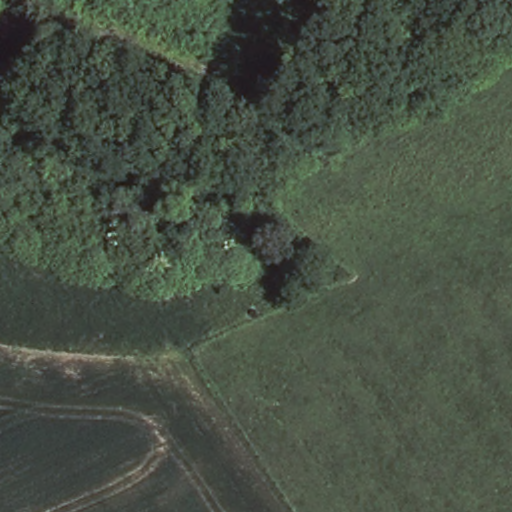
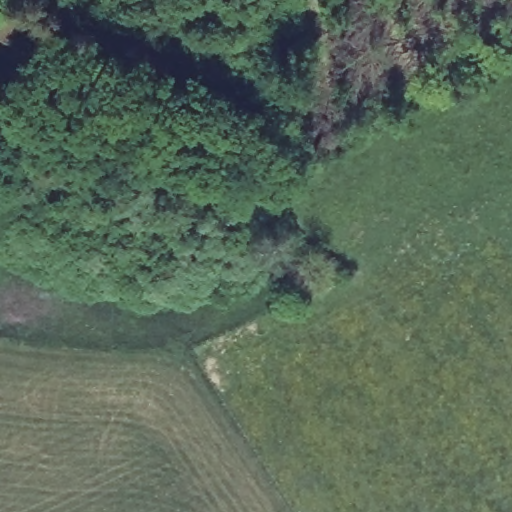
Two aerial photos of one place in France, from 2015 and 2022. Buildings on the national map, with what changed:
unchanged [(9,0),(12,0),(35,14),(24,34),(18,44),(0,33),(0,15),(9,0)]
unchanged [(60,146),(60,170),(14,169),(17,143),(60,146)]

